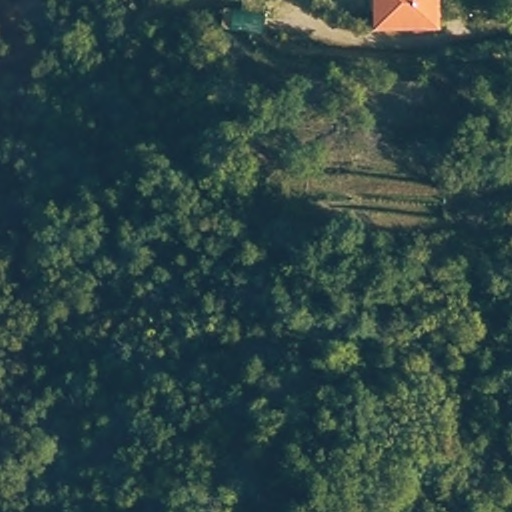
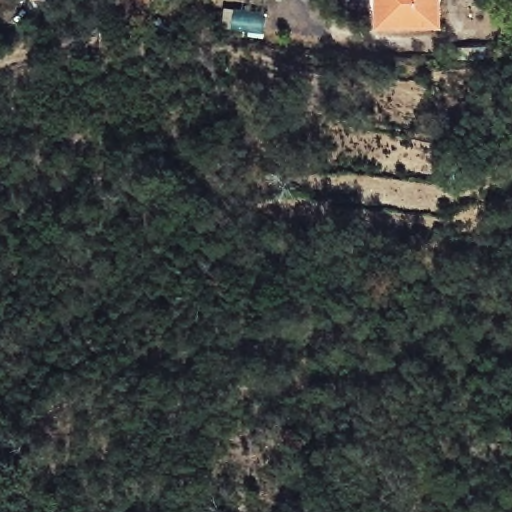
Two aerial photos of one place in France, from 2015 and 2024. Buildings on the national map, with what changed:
unchanged [(372,34),(372,0),(440,0),(440,33),(372,34)]

